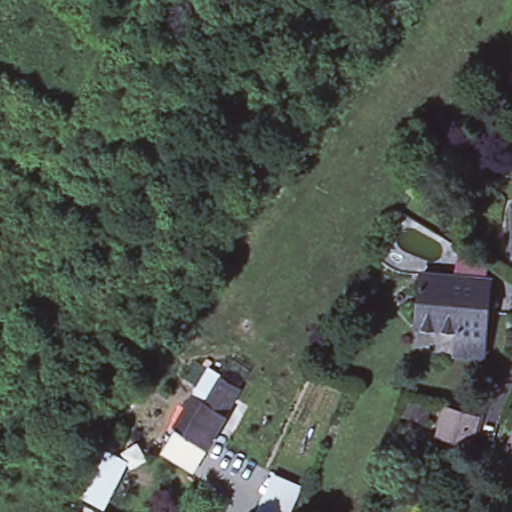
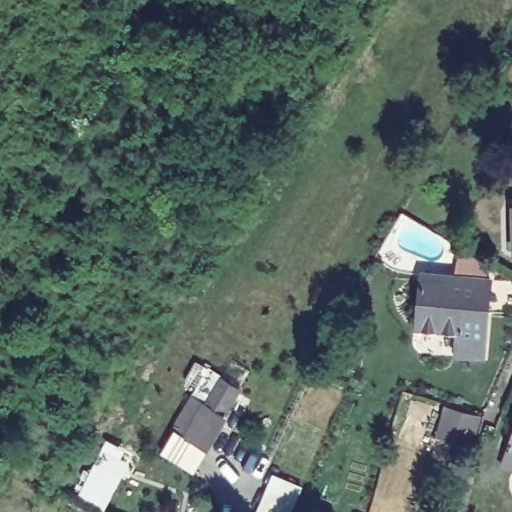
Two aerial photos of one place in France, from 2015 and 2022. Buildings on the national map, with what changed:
unchanged [(483,351),(456,349),(458,325),(417,322),(421,270),(455,272),(457,246),(483,261),(482,275),(490,275),(483,351)]
unchanged [(232,388),(201,451),(180,441),(201,397),(189,391),(198,372),(232,388)]
unchanged [(477,419),(470,444),(437,434),(445,409),(477,419)]
unchanged [(495,424),(491,433),(482,430),(485,421),(495,424)]
unchanged [(508,436),(512,426),(512,437),(508,436)]

